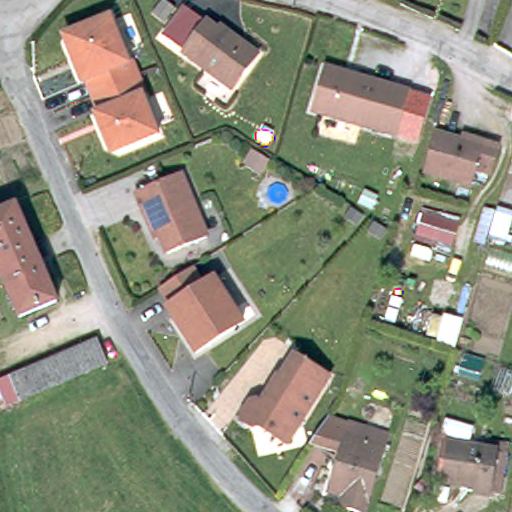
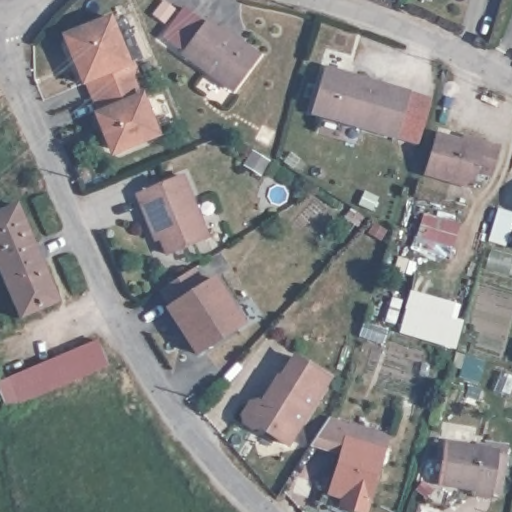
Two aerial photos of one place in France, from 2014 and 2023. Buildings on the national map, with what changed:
unchanged [(218,26),(220,24),(234,34),(232,36),(241,43),(243,40),(258,51),(232,88),(181,52),(184,49),(165,35),(185,6),(204,21),(206,18),(218,26)]
unchanged [(111,14),(132,64),(136,61),(147,93),(143,94),(160,136),(109,154),(93,113),(100,111),(89,81),(81,85),(62,36),(111,14)]
unchanged [(324,65),(343,71),(342,74),(350,76),(351,73),(432,100),(421,148),(311,109),(324,65)]
unchanged [(426,166),(438,126),(484,139),(486,135),(500,139),(491,168),(477,164),(473,179),(426,166)]
unchanged [(138,192),(182,175),(206,238),(167,254),(160,236),(155,238),(150,225),(138,192)]
unchanged [(60,299),(21,315),(0,266),(0,211),(18,203),(60,299)]
unchanged [(512,234),(495,229),(501,209),(512,211),(512,231),(512,234)]
unchanged [(437,220),(460,226),(453,249),(430,242),(437,220)]
unchanged [(193,269),(195,267),(206,284),(217,277),(245,323),(198,352),(170,307),(174,305),(163,288),(193,269)]
new [(460,304),(457,318),(463,320),(455,348),(398,332),(410,290),(460,304)]
unchanged [(97,333),(108,358),(22,394),(8,399),(0,380),(0,374),(12,369),(97,333)]
unchanged [(241,417),(247,406),(255,403),(260,405),(275,379),(277,380),(290,357),(326,377),(288,445),(260,429),(253,431),(242,425),(241,417)]
unchanged [(335,416),(355,422),(352,434),(391,446),(371,512),(347,504),(350,495),(335,490),(348,450),(316,440),(335,416)]
unchanged [(450,447),(500,455),(492,498),(477,495),(478,485),(463,483),(463,488),(443,485),(450,447)]

